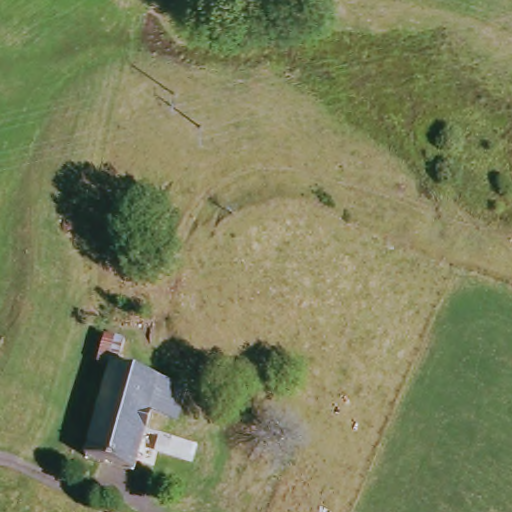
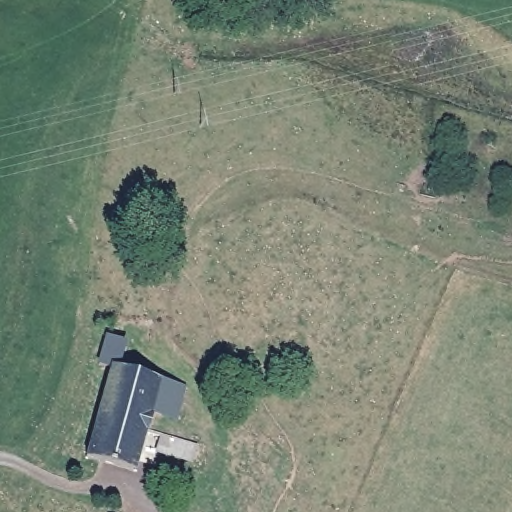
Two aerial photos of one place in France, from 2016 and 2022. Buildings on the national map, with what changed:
unchanged [(192,425),(170,420),(155,474),(102,460),(127,370),(200,387),(192,425)]

